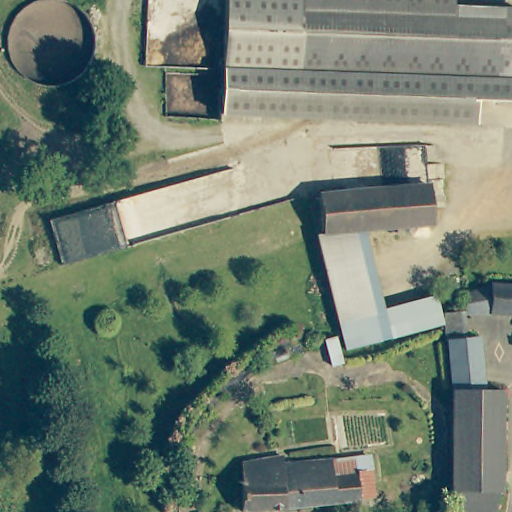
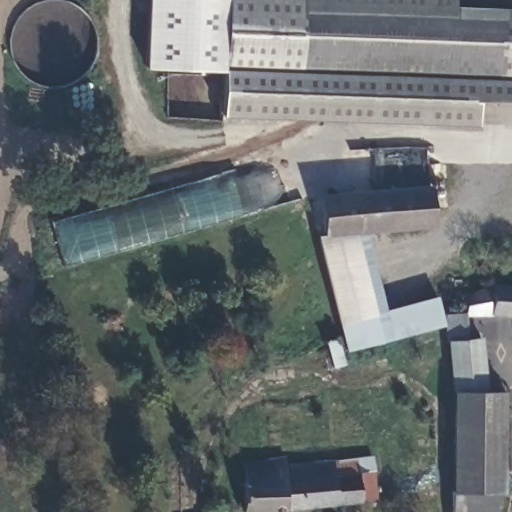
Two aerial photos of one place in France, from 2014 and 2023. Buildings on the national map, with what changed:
new [(144,67),(147,0),(231,0),(229,70),(144,67)]
unchanged [(457,5),(512,7),(512,98),(483,97),(482,120),(227,111),(231,0),(457,0),(457,5)]
unchanged [(438,220),(355,231),(328,235),(319,200),(434,186),(436,203),(438,220)]
unchanged [(328,235),(355,231),(385,341),(351,350),(343,323),(319,236),(328,235)]
unchanged [(506,319),(506,312),(465,315),(464,312),(461,293),(492,288),(494,286),(512,287),(512,320),(506,319)]
new [(377,311),(436,295),(442,320),(444,325),(385,341),(377,311)]
unchanged [(464,346),(483,343),(490,395),(508,394),(508,493),(464,496),(461,451),(459,450),(462,407),(456,375),(442,330),(446,328),(442,320),(459,317),(464,346)]
unchanged [(256,512),(253,512),(252,496),(247,461),(250,460),(272,458),(285,456),(286,466),(312,463),(335,460),(339,473),(359,469),(384,464),(391,486),(263,511),(256,512)]
unchanged [(462,512),(464,496),(508,493),(506,512),(462,512)]

